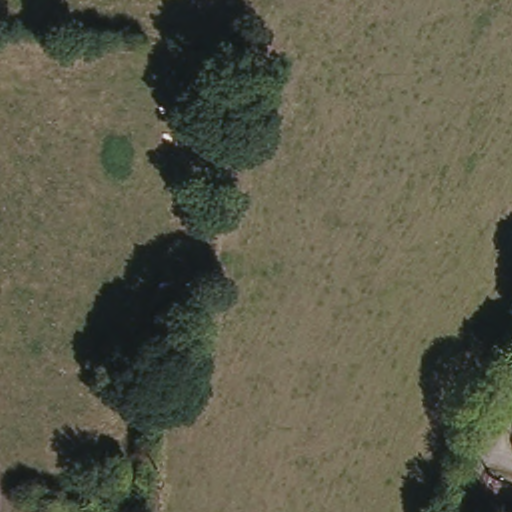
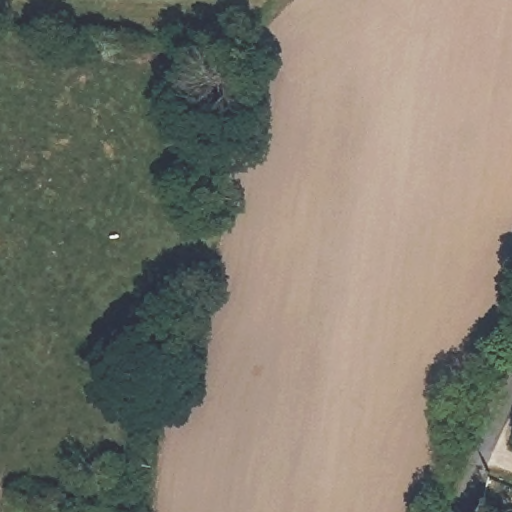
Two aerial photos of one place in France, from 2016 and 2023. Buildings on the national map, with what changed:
[]

